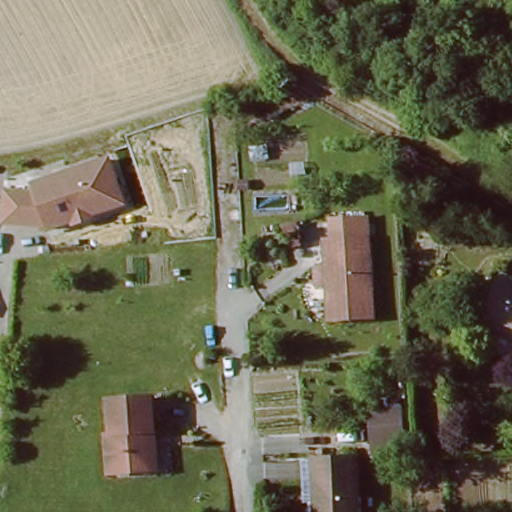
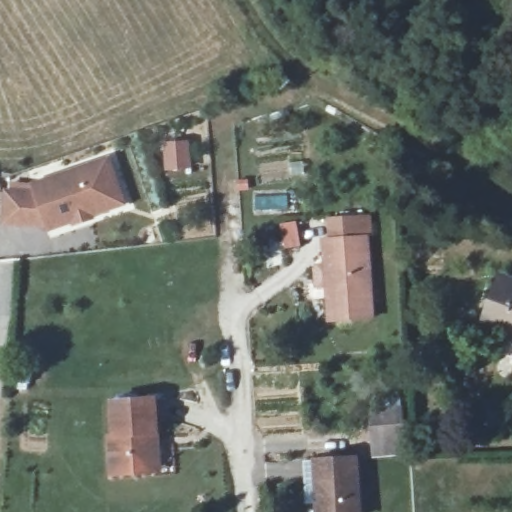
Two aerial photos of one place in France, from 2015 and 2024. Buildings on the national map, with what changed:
unchanged [(67,226),(66,223),(41,231),(39,228),(0,225),(0,195),(28,196),(25,187),(99,161),(110,194),(114,206),(99,211),(82,217),(83,221),(67,226)]
unchanged [(368,308),(325,312),(322,278),(317,231),(326,230),(361,226),(368,308)]
unchanged [(512,280),(512,338),(480,326),(500,275),(512,280)]
unchanged [(106,438),(116,437),(113,400),(153,398),(156,433),(158,468),(150,469),(118,471),(107,471),(106,438)]
unchanged [(409,444),(373,447),(370,406),(406,404),(409,444)]
unchanged [(353,460),(357,512),(319,512),(315,464),(353,460)]

